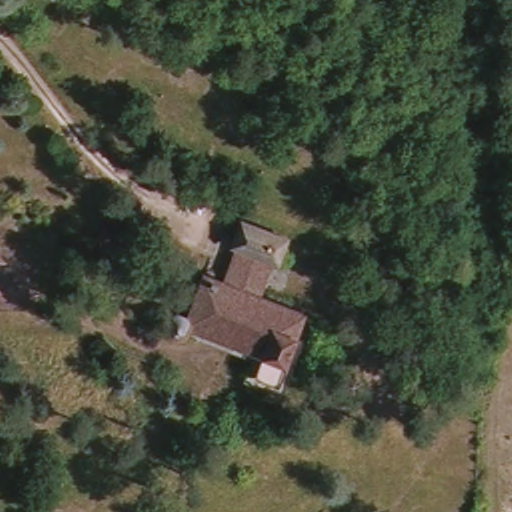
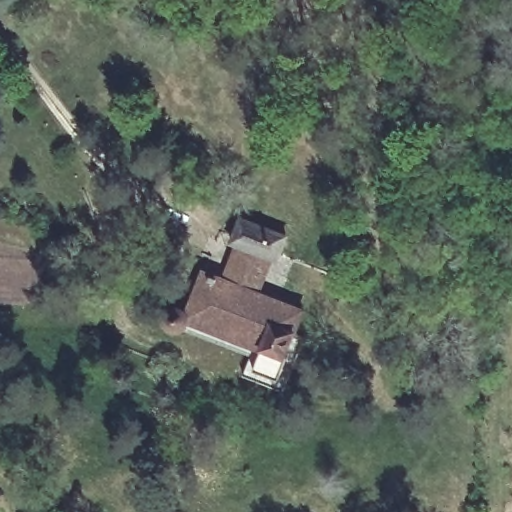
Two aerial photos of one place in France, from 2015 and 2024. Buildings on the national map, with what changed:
unchanged [(221,268),(232,236),(228,234),(238,206),(292,226),(282,252),(275,250),(261,284),(221,268)]
unchanged [(299,325),(305,327),(286,381),(250,366),(258,337),(192,311),(190,317),(184,322),(177,322),(170,317),(168,308),(173,300),(180,297),(186,299),(191,303),(207,262),(221,268),(261,284),(307,302),(299,325)]

